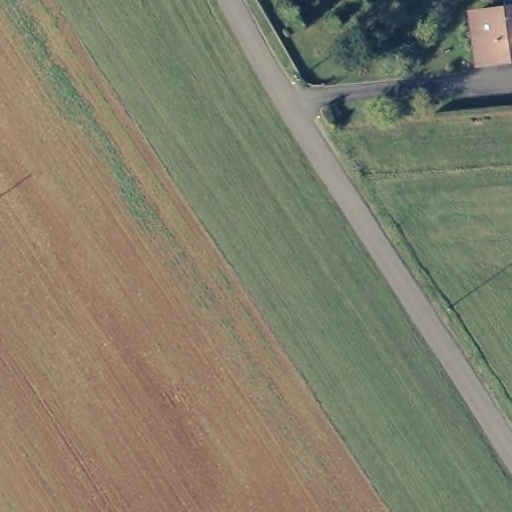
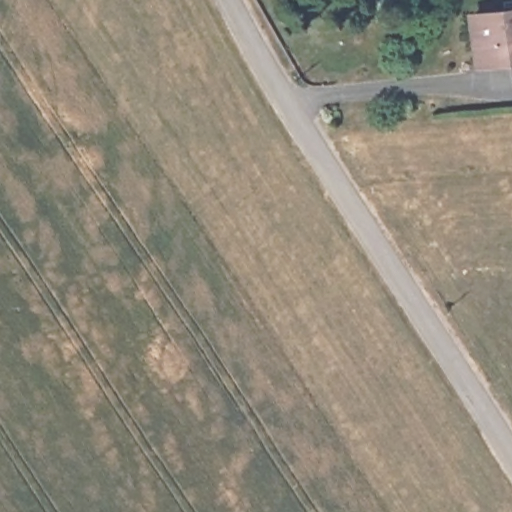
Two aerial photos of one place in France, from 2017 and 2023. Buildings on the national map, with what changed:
unchanged [(466,26),(512,17),(512,62),(474,70),(466,26)]

